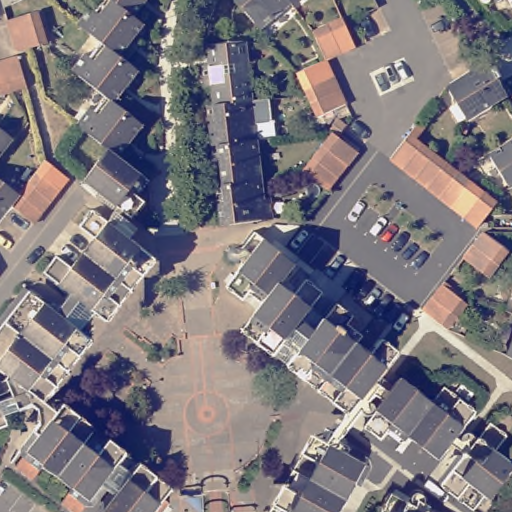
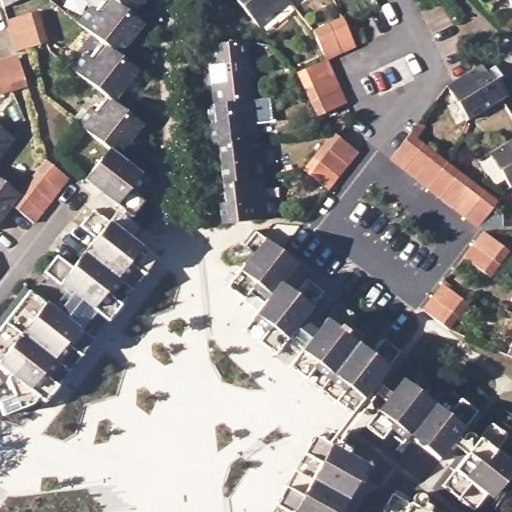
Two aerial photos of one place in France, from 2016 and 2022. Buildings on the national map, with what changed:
unchanged [(6,7),(4,0),(27,0),(27,1),(6,7)]
unchanged [(95,4),(101,8),(106,0),(121,0),(137,13),(147,21),(124,52),(106,39),(82,20),(95,4)]
unchanged [(121,0),(148,0),(137,13),(121,0)]
unchanged [(238,0),(288,0),(259,23),(238,0)]
unchanged [(50,43),(32,48),(26,49),(20,51),(11,21),(42,12),(50,43)]
unchanged [(343,54),(330,61),(316,30),(332,25),(346,18),(358,47),(343,54)]
unchanged [(77,66),(90,51),(94,55),(106,39),(124,52),(144,66),(118,100),(111,95),(77,66)]
unchanged [(214,86),(208,86),(206,66),(211,64),(209,45),(250,41),(257,100),(217,105),(214,86)]
unchanged [(0,91),(0,62),(21,56),(30,86),(1,94),(0,91)]
unchanged [(447,86),(453,82),(475,69),(490,60),(510,93),(467,120),(447,86)]
unchanged [(311,93),(307,87),(302,74),(330,61),(336,74),(343,89),(350,104),(322,116),(315,102),(311,93)]
unchanged [(93,105),(99,109),(111,95),(118,100),(148,122),(124,153),(113,145),(82,121),(93,105)]
unchanged [(217,105),(257,100),(273,98),(276,121),(260,123),(262,140),(221,144),(217,120),(212,121),(211,105),(217,105)]
unchanged [(13,139),(0,156),(0,129),(13,139)]
unchanged [(456,204),(443,194),(406,165),(394,156),(413,130),(427,140),(451,159),(464,169),(476,178),(485,184),(489,188),(501,197),(490,212),(482,224),(468,215),(456,204)]
unchanged [(312,158),(322,146),(331,133),(337,137),(356,151),(345,164),(336,176),(326,190),(302,171),(312,158)]
unchanged [(489,149),(512,135),(512,182),(510,183),(489,149)]
unchanged [(222,159),(217,160),(216,145),(221,144),(262,140),(267,180),(226,184),(222,159)]
unchanged [(86,182),(90,177),(113,145),(124,153),(155,177),(144,194),(149,199),(136,214),(107,191),(104,196),(96,190),(86,182)]
unchanged [(15,202),(20,196),(51,156),(72,174),(36,220),(15,202)]
unchanged [(227,200),(222,199),(220,185),(226,184),(267,180),(268,199),(274,199),(276,218),(231,223),(227,200)]
unchanged [(20,196),(15,202),(0,221),(0,181),(20,196)]
unchanged [(91,215),(89,213),(95,204),(98,206),(100,205),(106,209),(104,211),(159,255),(111,316),(55,273),(53,275),(47,271),(49,269),(91,215)]
unchanged [(247,324),(252,318),(261,307),(273,291),(259,280),(247,295),(231,282),(254,252),(246,245),(249,241),(247,239),(257,227),(301,260),(285,280),(299,291),(311,275),(327,288),(281,348),(279,350),(247,324)]
unchanged [(467,252),(477,240),(487,228),(512,248),(502,260),(493,272),(467,252)]
unchanged [(2,264),(0,268),(0,262),(2,264)]
unchanged [(452,329),(427,309),(436,297),(446,284),(472,304),(462,317),(452,329)]
unchanged [(72,322),(86,333),(91,337),(96,341),(71,375),(48,404),(0,366),(0,325),(28,289),(35,293),(37,290),(47,299),(45,301),(54,308),(72,322)]
unchanged [(354,410),(336,396),(301,368),(293,361),(340,298),(342,300),(361,317),(356,323),(367,331),(365,334),(361,339),(376,350),(379,345),(387,335),(403,349),(392,363),(354,410)]
unchanged [(512,351),(511,350),(512,348),(512,351)]
new [(39,412),(32,407),(7,415),(6,411),(19,405),(15,396),(12,397),(4,377),(8,372),(48,404),(51,401),(58,407),(64,397),(111,432),(182,491),(168,512),(92,512),(14,449),(39,412)]
unchanged [(396,389),(393,387),(405,373),(407,375),(437,399),(412,432),(406,439),(392,427),(387,435),(369,422),(396,389)]
unchanged [(437,399),(449,383),(481,408),(453,442),(456,445),(446,458),(417,436),(412,432),(437,399)]
unchanged [(19,405),(6,411),(11,426),(0,431),(0,398),(2,402),(15,396),(19,405)]
demolished [(131,455),(106,487),(108,489),(102,498),(99,495),(86,512),(77,512),(66,503),(77,489),(47,467),(35,480),(20,467),(37,445),(32,442),(41,430),(42,431),(46,427),(50,430),(67,407),(131,455)]
unchanged [(498,447),(512,457),(512,462),(477,506),(445,482),(457,467),(453,464),(465,449),(470,452),(496,419),(511,431),(498,447)]
unchanged [(316,441),(329,448),(332,441),(335,437),(363,453),(357,464),(372,471),(365,484),(362,483),(347,512),(277,512),(316,441)]
demolished [(114,503),(112,501),(116,495),(119,497),(146,462),(178,486),(169,497),(175,500),(165,512),(107,512),(114,503)]
unchanged [(385,511),(394,493),(397,495),(411,503),(426,512),(387,512),(385,511)]
unchanged [(432,507),(441,512),(430,512),(432,507)]

